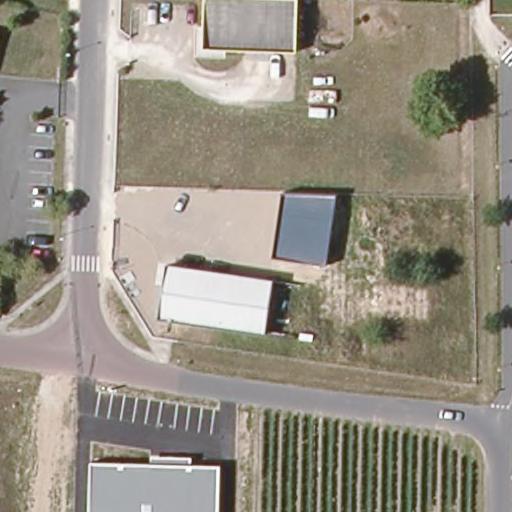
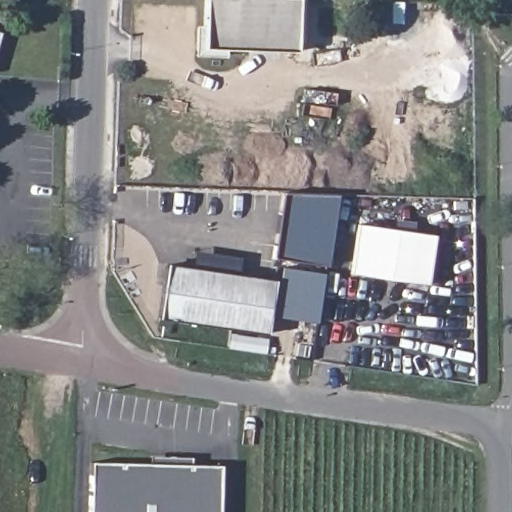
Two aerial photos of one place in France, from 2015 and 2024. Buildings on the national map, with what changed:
unchanged [(200,45),(203,0),(295,0),(294,49),(200,45)]
unchanged [(326,266),(272,259),(281,193),(335,195),(326,266)]
new [(358,223),(393,228),(395,219),(416,222),(415,231),(433,234),(426,285),(351,274),(358,223)]
unchanged [(162,315),(168,262),(273,278),(263,332),(162,315)]
new [(273,317),(280,267),(321,273),(315,323),(273,317)]
unchanged [(220,466),(219,512),(89,512),(91,463),(150,464),(151,456),(191,458),(191,465),(220,466)]

